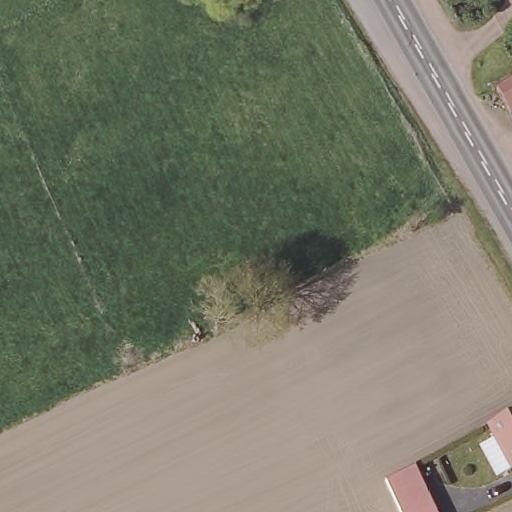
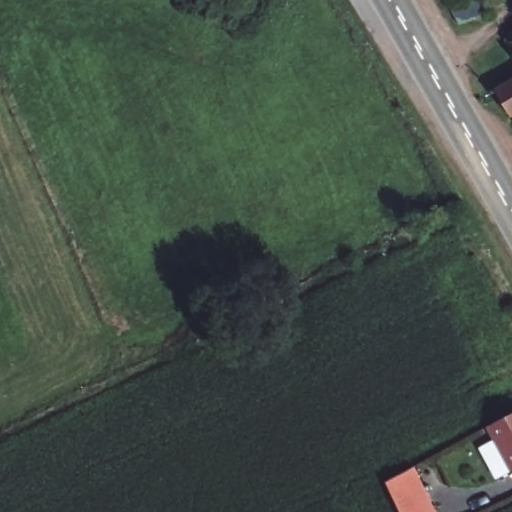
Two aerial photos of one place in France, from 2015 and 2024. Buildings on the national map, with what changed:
unchanged [(512,82),(512,111),(499,89),(512,82)]
unchanged [(507,473),(485,428),(512,414),(512,470),(507,473)]
unchanged [(437,512),(402,512),(388,482),(416,469),(437,512)]

